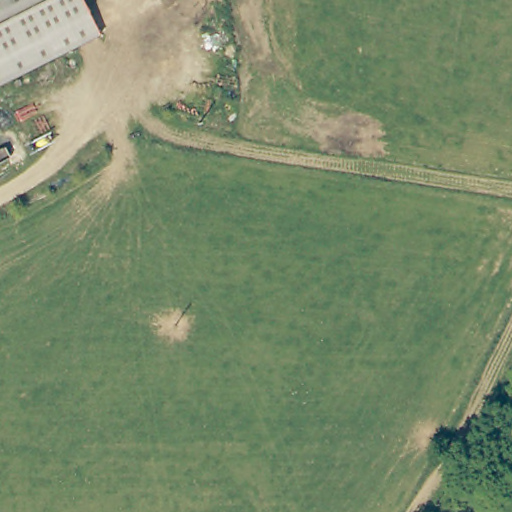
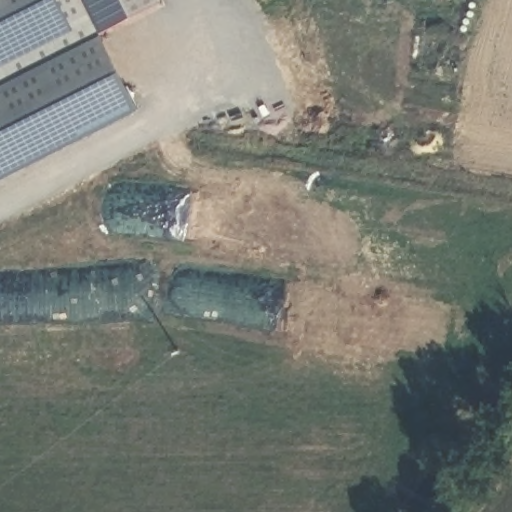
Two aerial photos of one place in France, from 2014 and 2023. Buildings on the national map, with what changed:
unchanged [(17,76),(0,40),(0,0),(57,0),(79,46),(17,76)]
unchanged [(85,0),(102,34),(79,46),(57,0),(85,0)]
new [(85,0),(161,0),(163,3),(102,34),(85,0)]
new [(13,78),(17,76),(79,46),(102,34),(139,109),(0,179),(0,84),(13,78)]
unchanged [(0,84),(0,52),(13,78),(0,84)]

